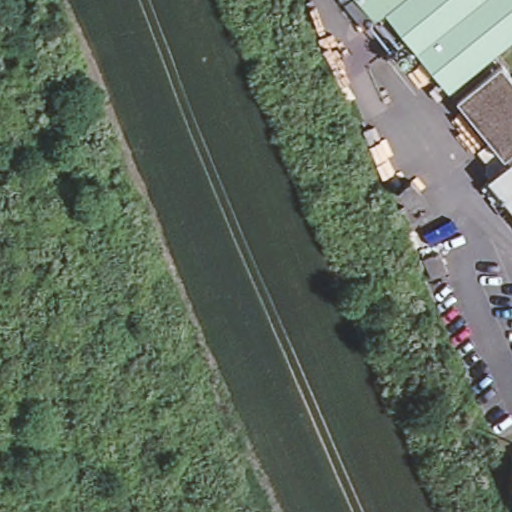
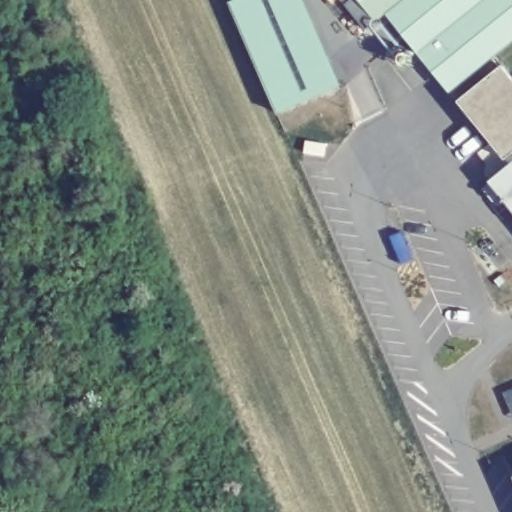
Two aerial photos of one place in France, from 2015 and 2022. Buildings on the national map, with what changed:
new [(341,88),(276,117),(228,3),(236,0),(303,0),(341,88)]
unchanged [(381,7),(372,14),(363,22),(344,0),(377,0),(381,7)]
unchanged [(384,5),(381,7),(377,0),(390,0),(384,5)]
unchanged [(384,5),(390,0),(494,0),(420,48),(384,5)]
unchanged [(449,84),(420,48),(494,0),(512,0),(512,32),(449,84)]
unchanged [(486,178),(487,177),(481,170),(482,159),(475,149),(487,138),(453,99),(497,62),(512,80),(512,210),(496,190),(486,178)]
unchanged [(416,192),(426,203),(415,212),(405,201),(416,192)]
unchanged [(436,291),(428,271),(444,264),(452,284),(436,291)]

